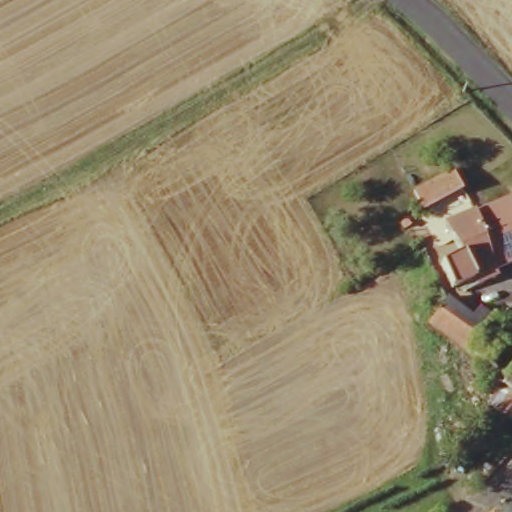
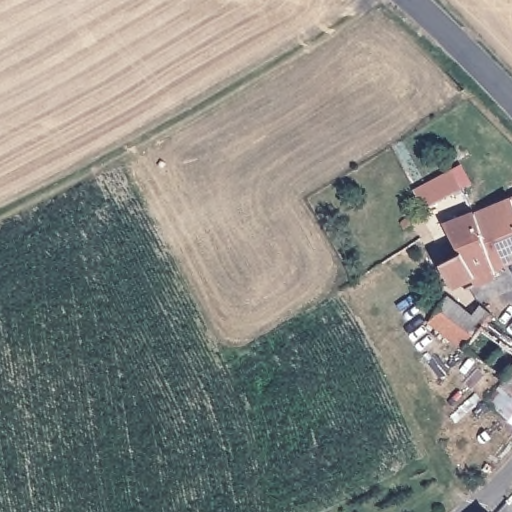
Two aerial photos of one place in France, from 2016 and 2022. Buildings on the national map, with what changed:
unchanged [(451,171),(459,186),(420,206),(412,189),(450,169),(451,171)]
unchanged [(512,257),(512,259),(489,268),(454,285),(449,286),(437,262),(457,252),(442,224),(472,211),(510,196),(512,195),(512,251),(510,251),(512,257)]
unchanged [(470,315),(475,306),(487,315),(480,323),(462,348),(427,321),(445,297),(470,315)]
unchanged [(502,377),(512,363),(512,392),(499,382),(502,377)]
unchanged [(512,423),(485,402),(499,382),(512,392),(512,423)]

